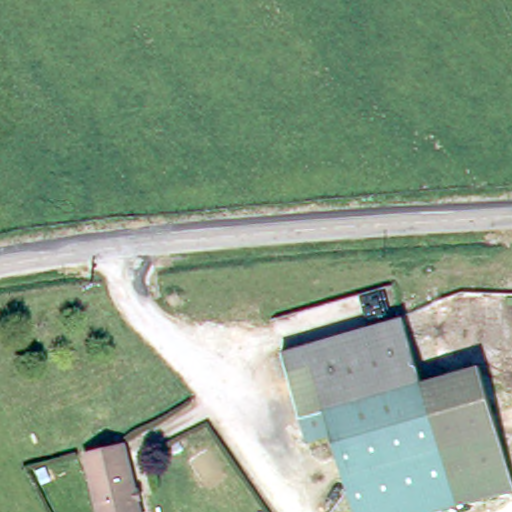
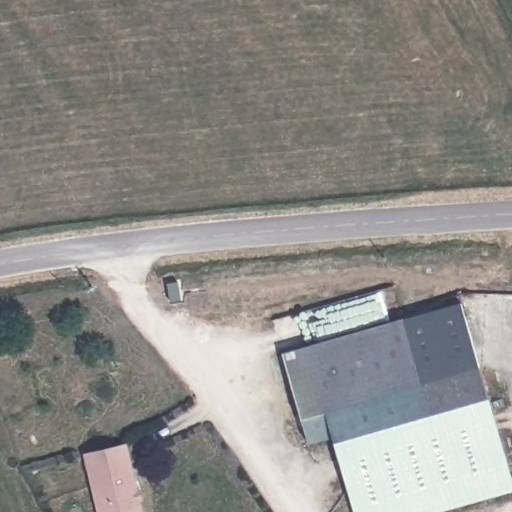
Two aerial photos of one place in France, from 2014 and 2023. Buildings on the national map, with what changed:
new [(461,300),(479,361),(421,379),(400,314),(461,300)]
unchanged [(309,437),(282,351),(400,314),(421,379),(479,361),(512,473),(512,484),(423,512),(358,512),(331,429),(309,437)]
unchanged [(125,443),(143,512),(100,512),(85,454),(125,443)]

